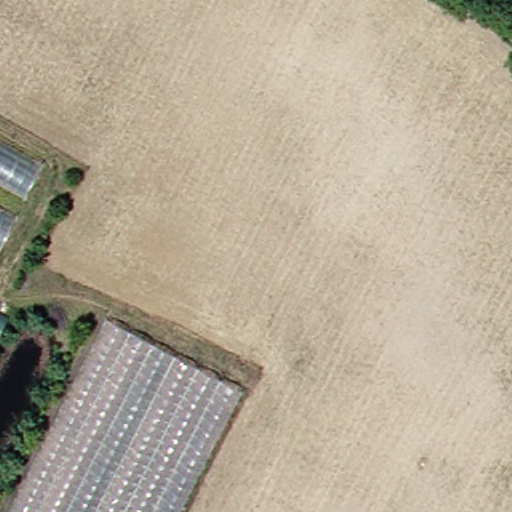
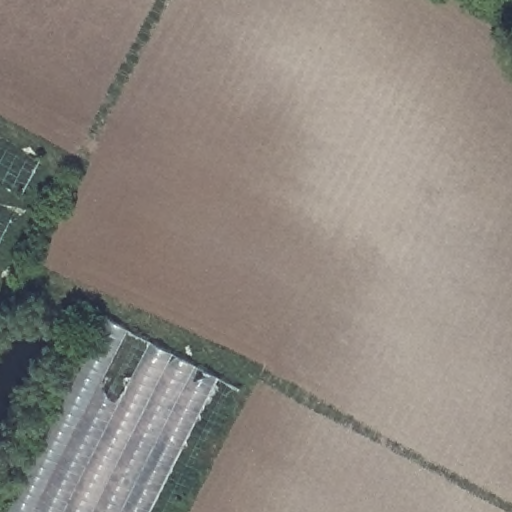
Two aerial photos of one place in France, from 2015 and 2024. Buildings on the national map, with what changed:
unchanged [(52,165),(37,201),(0,181),(0,137),(52,165)]
unchanged [(27,219),(9,252),(0,247),(0,204),(27,219)]
unchanged [(243,388),(180,512),(9,512),(105,315),(243,388)]

